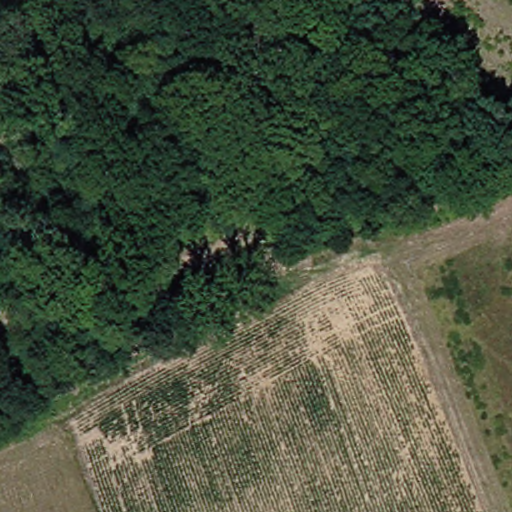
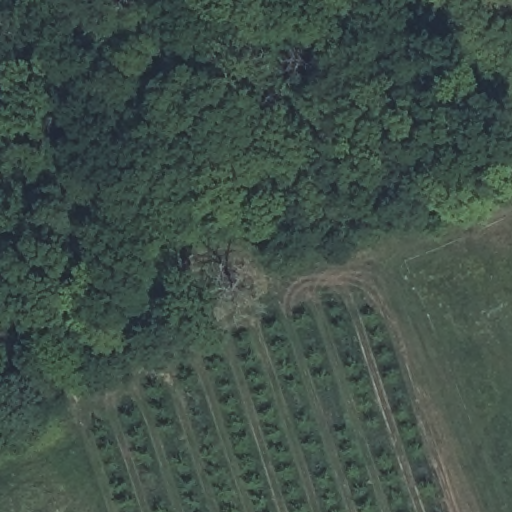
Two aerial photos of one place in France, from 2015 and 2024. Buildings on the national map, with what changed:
[]

